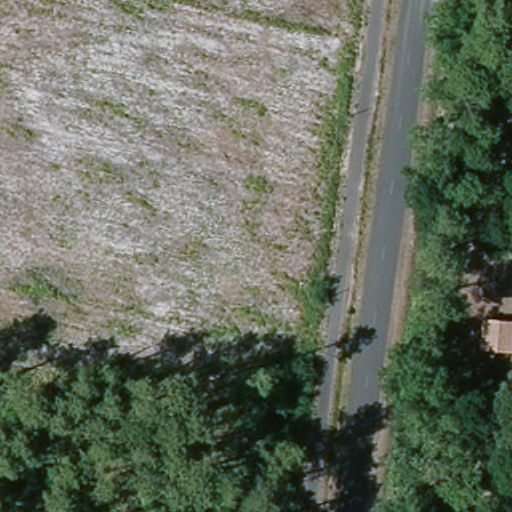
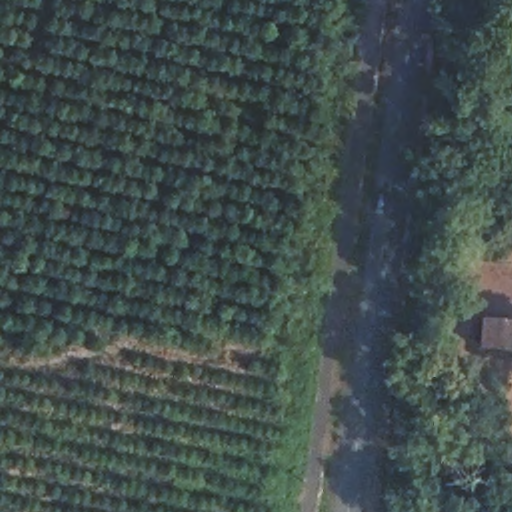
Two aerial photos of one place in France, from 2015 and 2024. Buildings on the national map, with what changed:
unchanged [(508,329),(499,361),(469,355),(478,321),(508,329)]
unchanged [(442,512),(437,512),(438,510),(442,512)]

